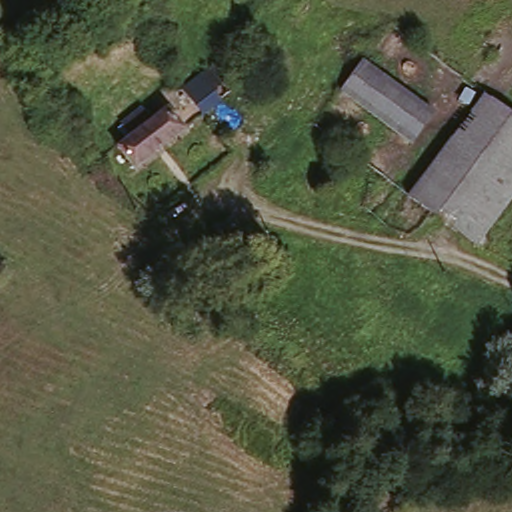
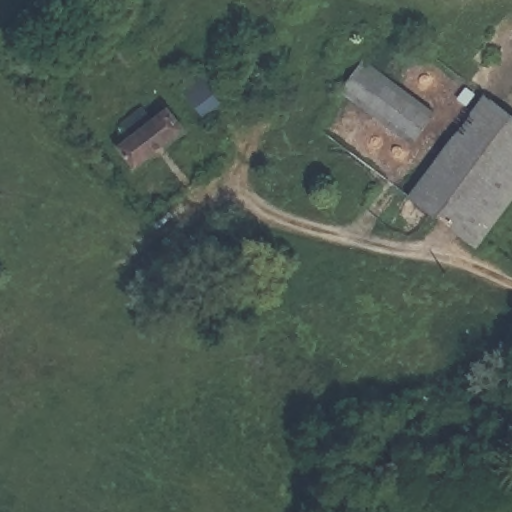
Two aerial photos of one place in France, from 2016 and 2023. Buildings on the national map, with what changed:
unchanged [(244,49),(264,73),(200,124),(182,99),(244,49)]
unchanged [(361,64),(431,119),(409,146),(339,89),(361,64)]
unchanged [(438,171),(499,98),(512,109),(512,195),(470,245),(435,217),(459,187),(438,171)]
unchanged [(133,141),(123,129),(147,109),(156,121),(175,107),(192,125),(135,170),(120,151),(133,141)]
unchanged [(413,199),(438,171),(459,187),(435,217),(413,199)]

